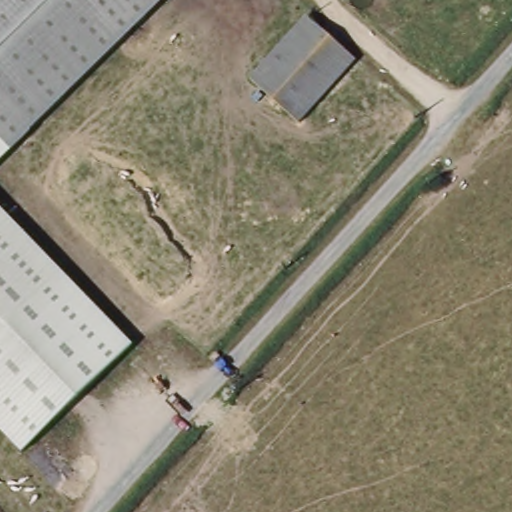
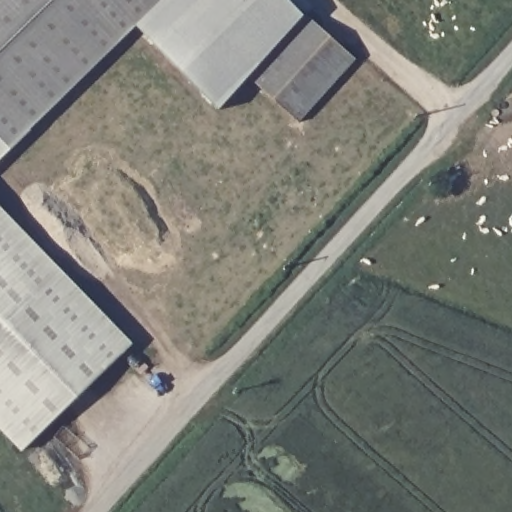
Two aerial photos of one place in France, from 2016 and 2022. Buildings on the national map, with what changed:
unchanged [(8,147),(0,139),(0,0),(160,0),(8,147)]
new [(307,19),(249,80),(219,109),(135,24),(160,0),(289,0),(307,19)]
unchanged [(355,63),(296,124),(249,80),(307,19),(355,63)]
unchanged [(0,156),(0,139),(8,147),(0,156)]
unchanged [(21,452),(0,431),(0,209),(136,347),(21,452)]

